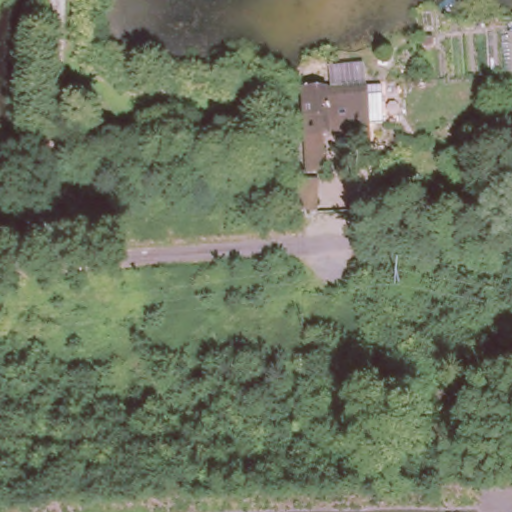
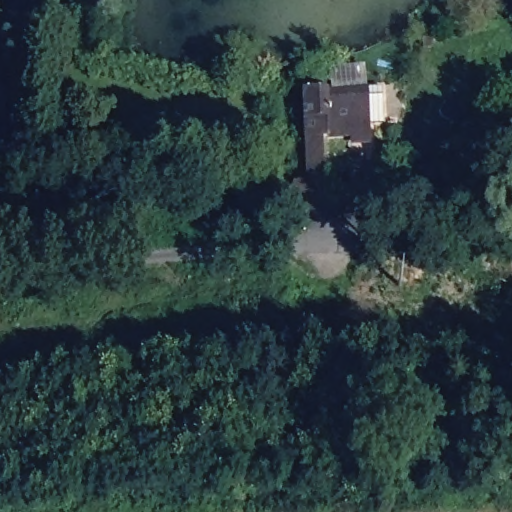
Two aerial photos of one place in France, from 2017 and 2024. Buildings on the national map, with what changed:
unchanged [(361,59),(373,131),(332,139),(328,85),(326,63),(361,59)]
unchanged [(311,124),(309,107),(317,107),(319,122),(311,124)]
unchanged [(310,165),(306,132),(323,130),(326,164),(310,165)]
unchanged [(306,171),(308,185),(299,186),(298,172),(306,171)]

